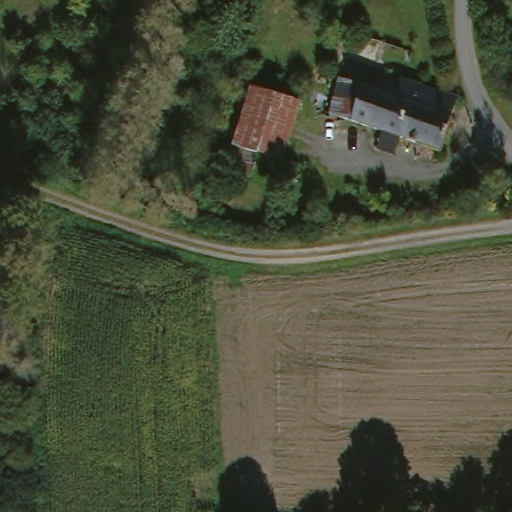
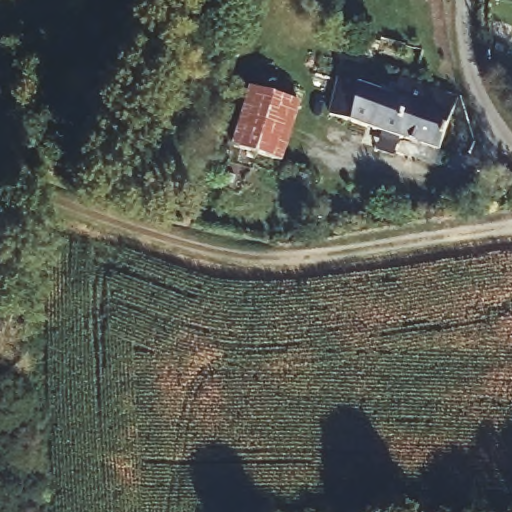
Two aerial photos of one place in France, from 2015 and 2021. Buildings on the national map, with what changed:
unchanged [(463,94),(445,146),(334,110),(343,74),(398,92),(405,74),(463,94)]
unchanged [(299,104),(281,161),(233,146),(251,89),(299,104)]

